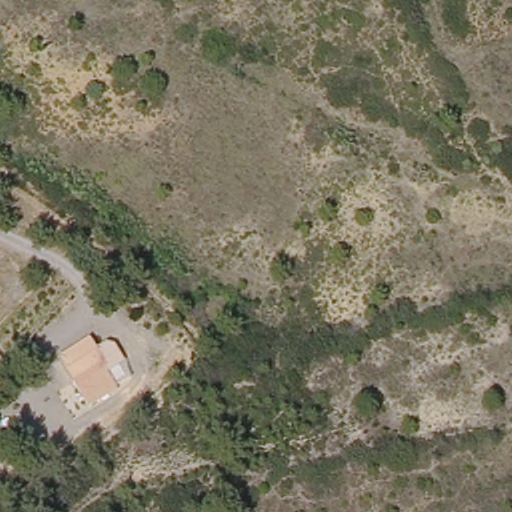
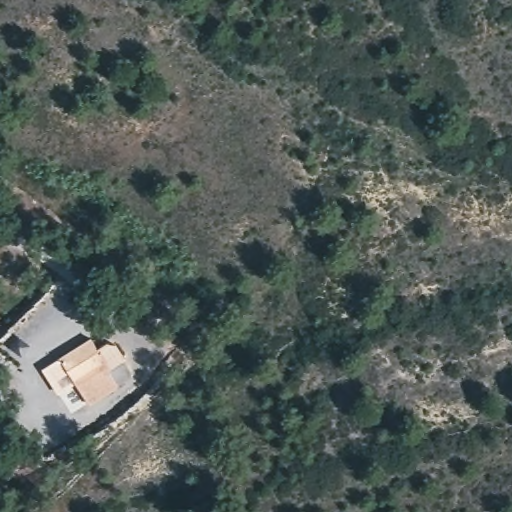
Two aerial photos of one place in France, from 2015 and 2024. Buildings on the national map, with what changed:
unchanged [(86,343),(93,355),(102,350),(109,352),(115,361),(103,368),(116,389),(83,410),(54,363),(86,343)]
unchanged [(40,460),(21,475),(10,461),(28,446),(40,460)]

